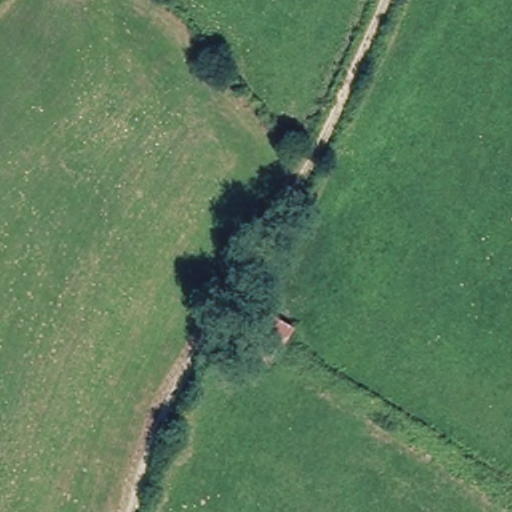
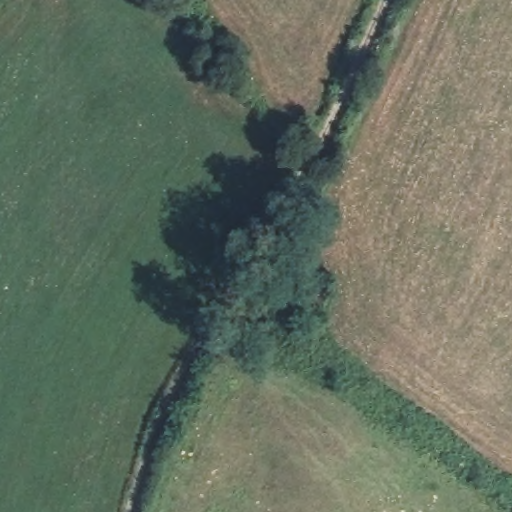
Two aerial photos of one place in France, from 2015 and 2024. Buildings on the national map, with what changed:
unchanged [(254,351),(276,313),(301,324),(280,362),(254,351)]

